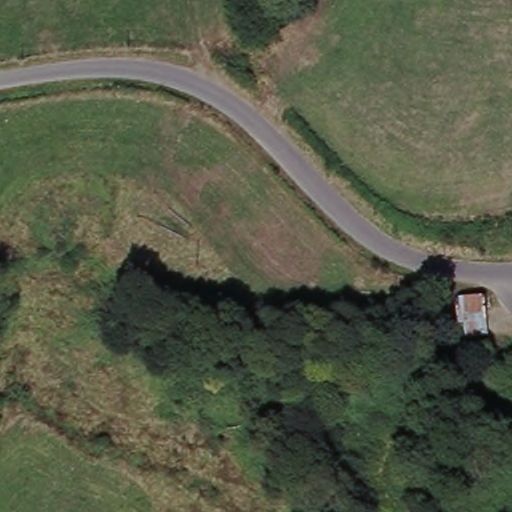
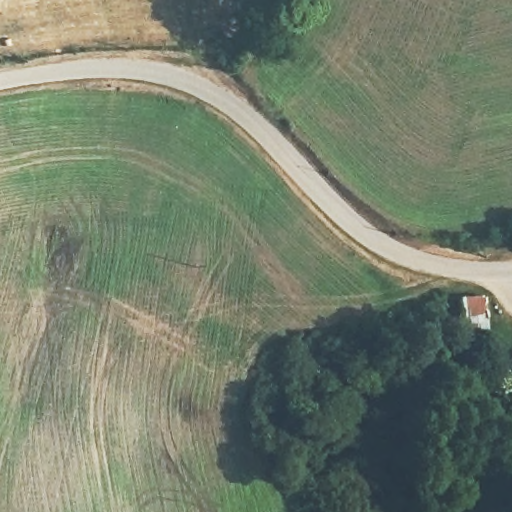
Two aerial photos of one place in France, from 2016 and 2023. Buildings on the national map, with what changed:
unchanged [(462,319),(450,319),(450,306),(461,307),(461,301),(486,298),(497,315),(498,323),(462,327),(462,319)]

